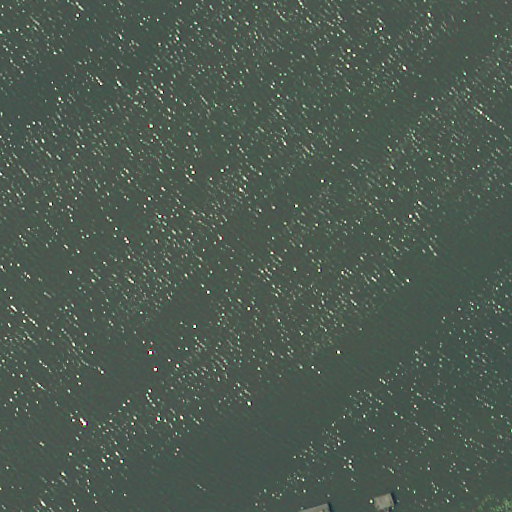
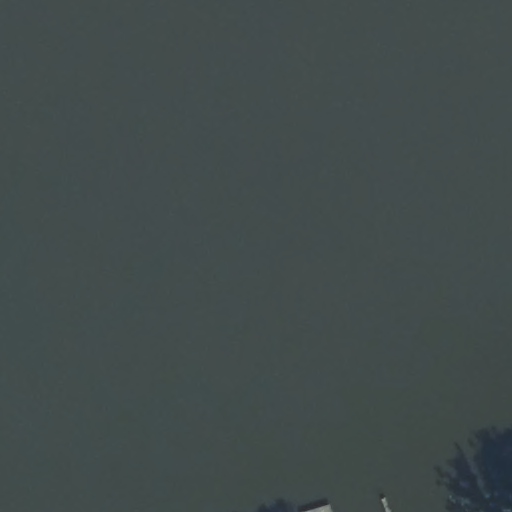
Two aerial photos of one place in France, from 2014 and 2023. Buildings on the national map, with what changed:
[]

